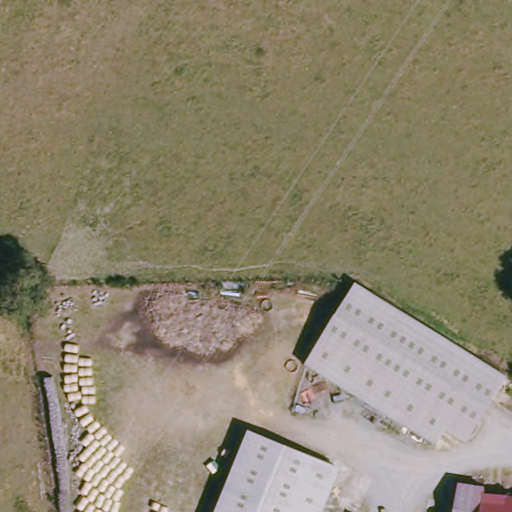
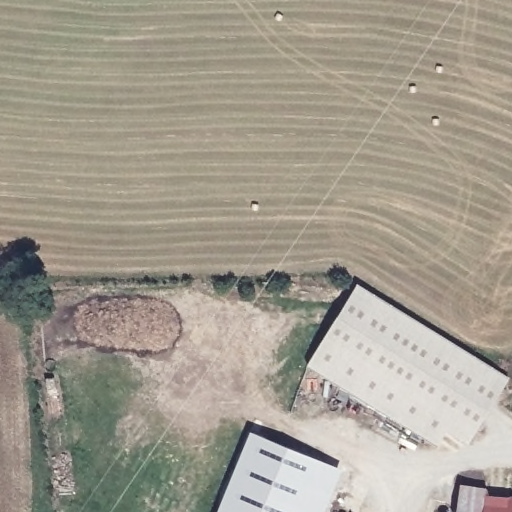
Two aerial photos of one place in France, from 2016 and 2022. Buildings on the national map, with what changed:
unchanged [(495,368),(506,375),(465,438),(445,425),(434,442),(307,361),(358,281),(495,368)]
unchanged [(342,473),(325,512),(218,512),(250,433),(332,468),(342,473)]
unchanged [(495,490),(494,497),(512,498),(512,512),(464,512),(468,487),(495,490)]

